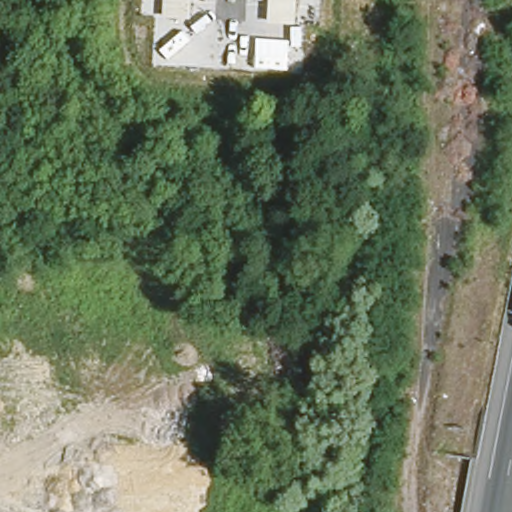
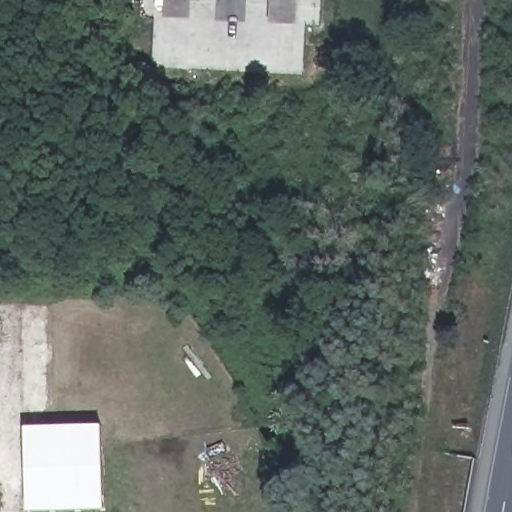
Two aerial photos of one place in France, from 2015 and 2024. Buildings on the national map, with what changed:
unchanged [(152,22),(154,0),(189,0),(188,24),(152,22)]
unchanged [(263,48),(265,12),(300,15),(298,50),(263,48)]
new [(26,512),(23,427),(101,425),(104,509),(26,512)]

